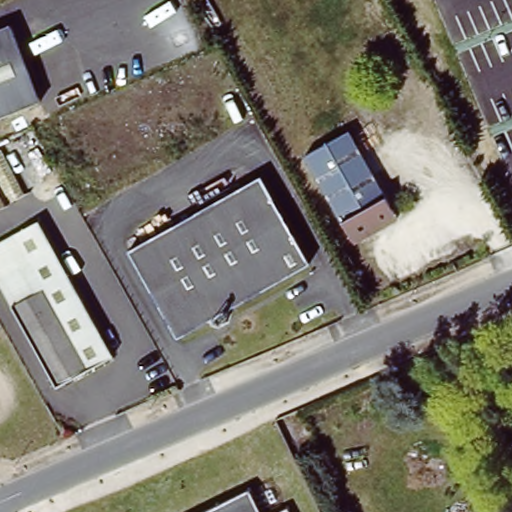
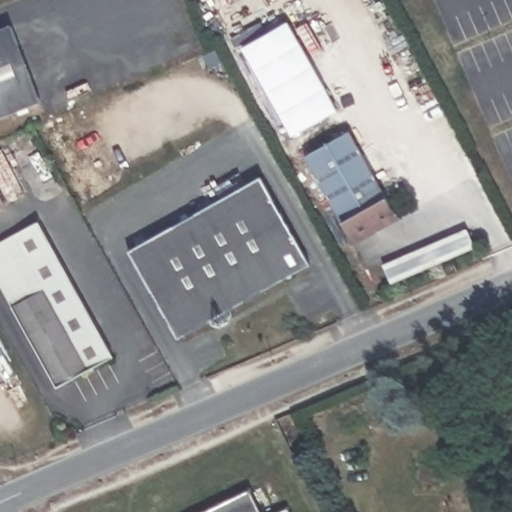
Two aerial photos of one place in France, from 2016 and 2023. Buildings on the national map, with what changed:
new [(336,110),(289,137),(240,49),(288,22),(336,110)]
unchanged [(0,115),(0,27),(10,24),(40,100),(0,115)]
unchanged [(351,241),(301,155),(345,129),(397,216),(351,241)]
unchanged [(0,196),(0,163),(24,207),(10,215),(0,196)]
unchanged [(249,180),(254,176),(305,264),(286,275),(249,180)]
unchanged [(213,200),(249,180),(286,275),(264,288),(213,200)]
unchanged [(207,319),(178,335),(128,250),(213,200),(264,288),(228,308),(233,316),(212,327),(207,319)]
unchanged [(52,247),(0,280),(0,242),(39,221),(52,247)]
unchanged [(114,355),(55,383),(0,285),(0,280),(52,247),(114,355)]
unchanged [(249,487),(261,512),(198,512),(249,487)]
unchanged [(288,506),(291,512),(273,512),(288,506)]

